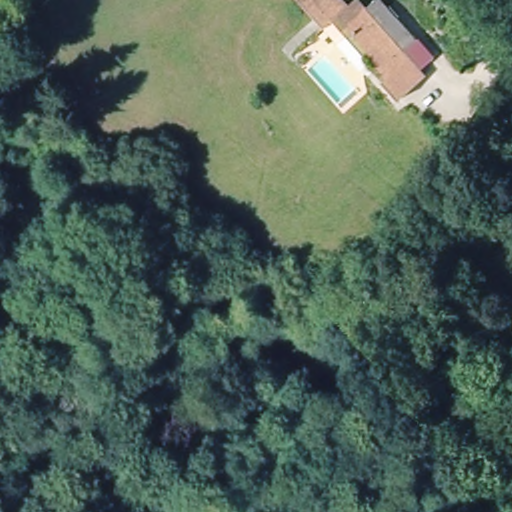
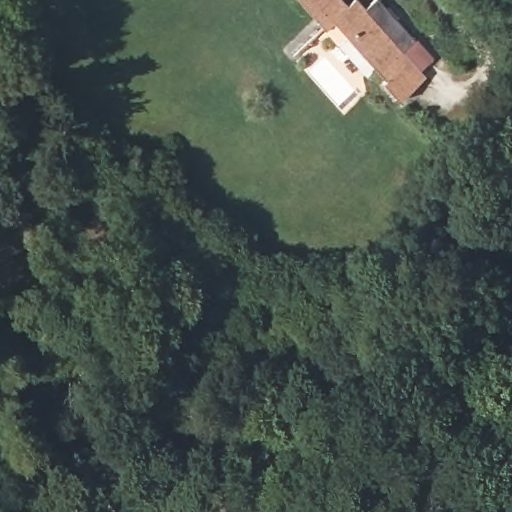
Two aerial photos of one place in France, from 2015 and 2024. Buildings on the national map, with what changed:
unchanged [(383,80),(343,37),(351,30),(337,14),(322,30),(294,0),(336,0),(346,10),(354,1),(362,10),(372,0),(376,0),(412,38),(400,52),(407,59),(383,80)]

